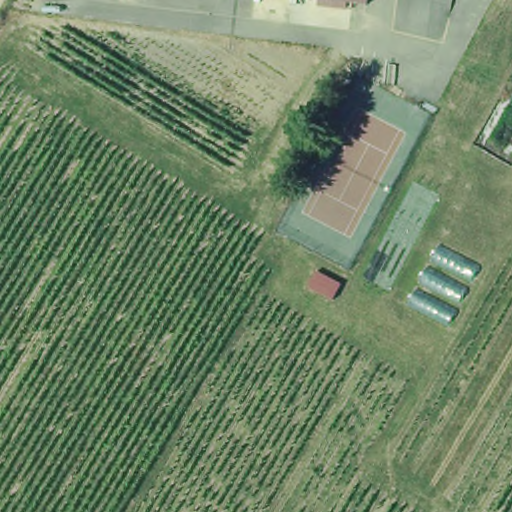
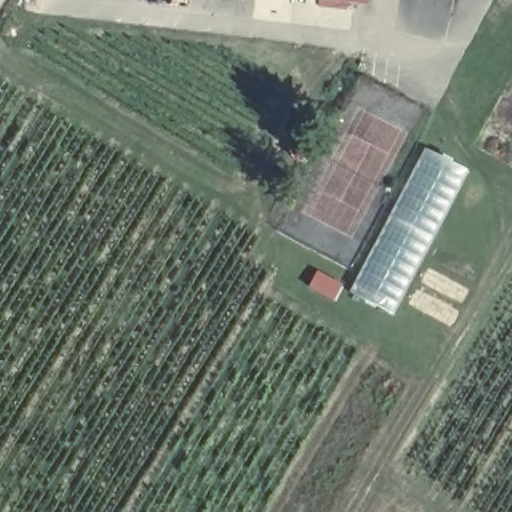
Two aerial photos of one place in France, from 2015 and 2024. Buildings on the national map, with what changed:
unchanged [(323,0),(365,0),(365,5),(323,0)]
new [(469,172),(392,316),(350,293),(425,149),(469,172)]
demolished [(450,327),(406,303),(441,241),(484,265),(450,327)]
unchanged [(334,307),(310,291),(322,272),(347,291),(334,307)]

